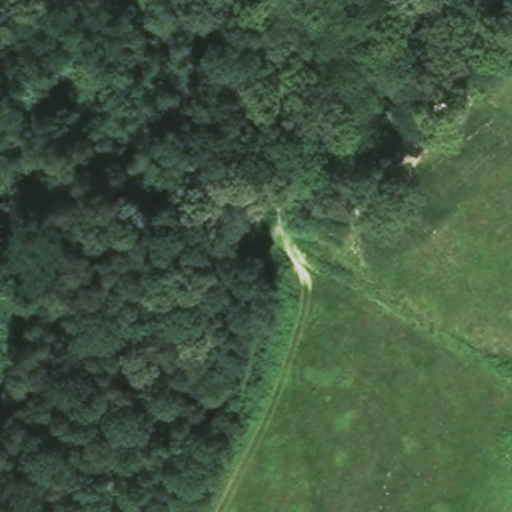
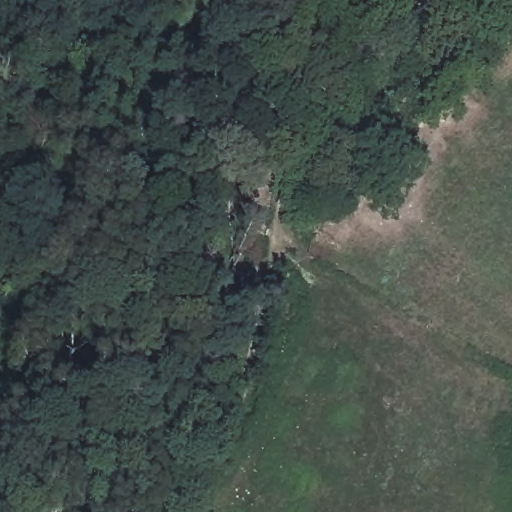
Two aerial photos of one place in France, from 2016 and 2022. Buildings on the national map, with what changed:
unchanged [(415,309),(435,320),(430,328),(411,320),(415,309)]

